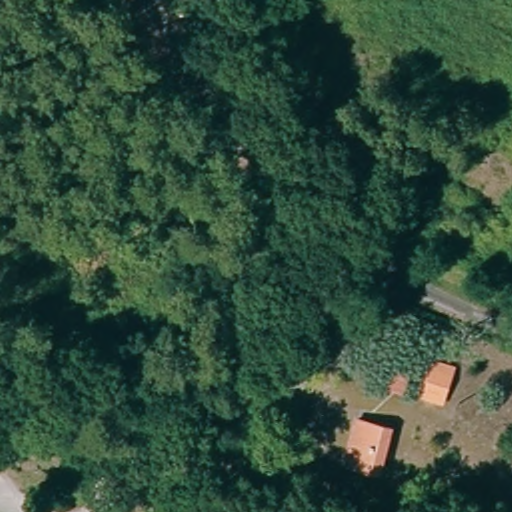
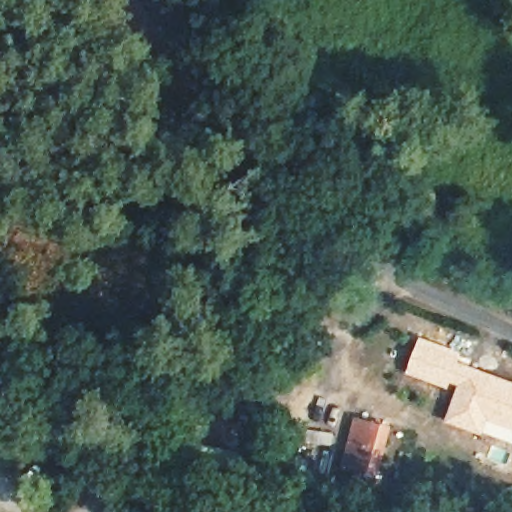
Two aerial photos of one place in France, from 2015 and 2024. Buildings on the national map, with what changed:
new [(512,380),(512,426),(488,417),(484,432),(447,419),(459,385),(451,381),(449,387),(408,374),(421,336),(463,352),(460,361),(512,380)]
unchanged [(401,372),(396,387),(385,383),(390,368),(401,372)]
demolished [(421,386),(425,368),(445,375),(439,392),(421,386)]
unchanged [(390,432),(377,475),(344,466),(356,422),(372,427),(390,432)]

